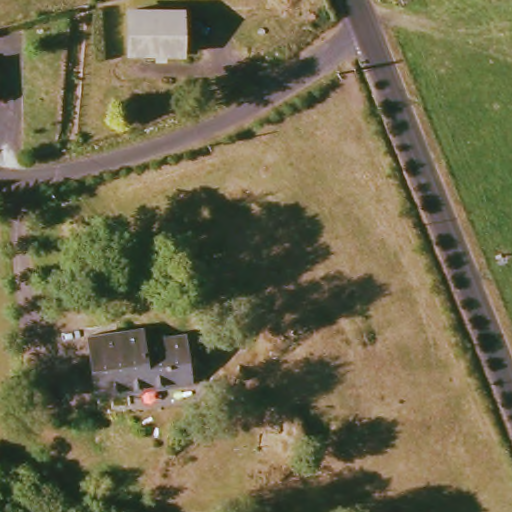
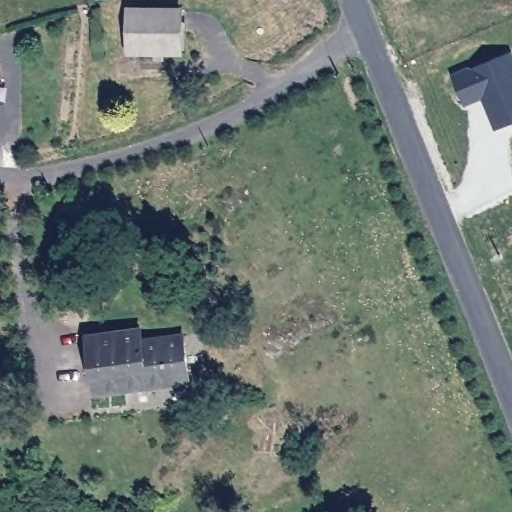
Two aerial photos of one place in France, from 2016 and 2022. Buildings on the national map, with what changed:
unchanged [(186,9),(183,58),(133,53),(136,5),(186,9)]
new [(482,99),(464,104),(452,74),(473,68),(472,66),(512,53),(512,122),(494,129),(482,99)]
unchanged [(150,331),(151,341),(193,338),(199,381),(102,392),(95,336),(150,331)]

